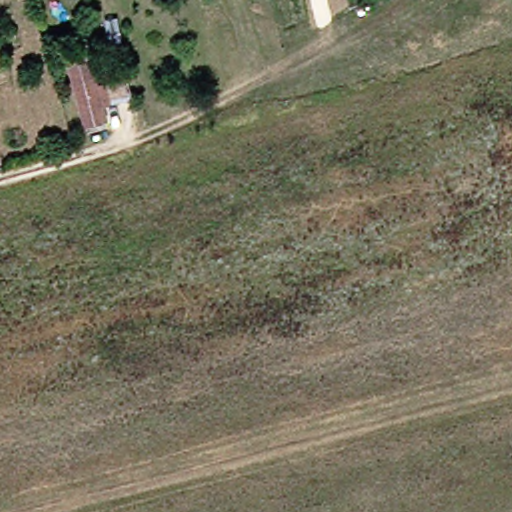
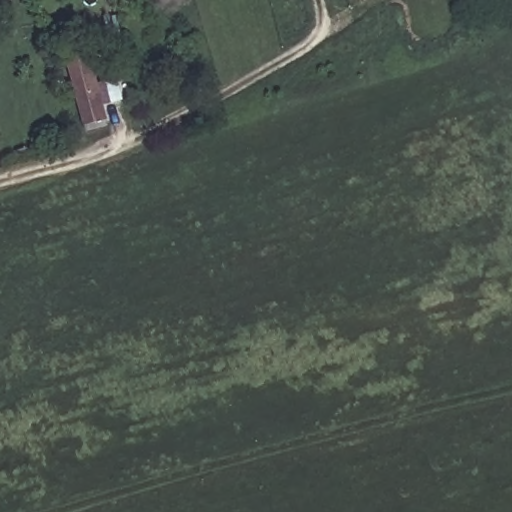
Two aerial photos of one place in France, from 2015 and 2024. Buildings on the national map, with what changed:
unchanged [(103,105),(96,107),(102,128),(82,133),(63,62),(83,58),(92,91),(99,89),(103,105)]

